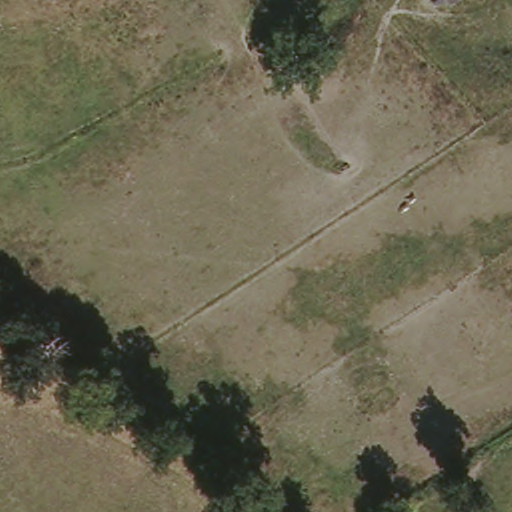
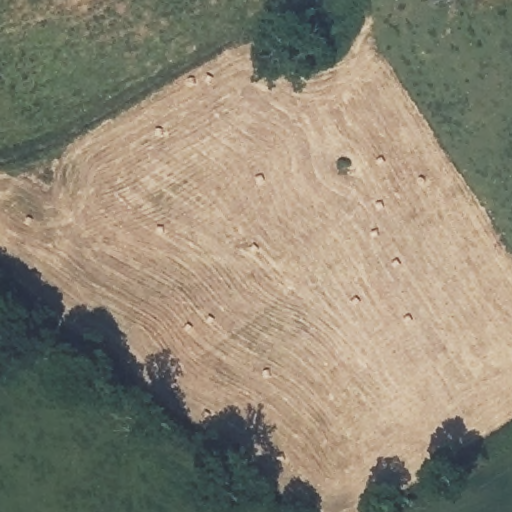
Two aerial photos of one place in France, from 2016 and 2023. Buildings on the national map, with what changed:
unchanged [(439,0),(448,0),(441,4),(439,0)]
unchanged [(452,0),(459,0),(455,2),(452,0)]

